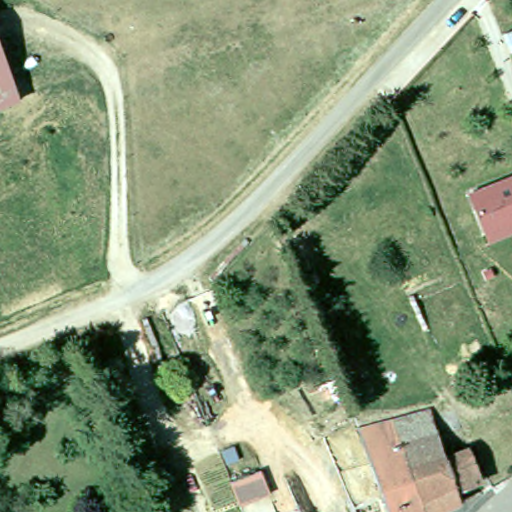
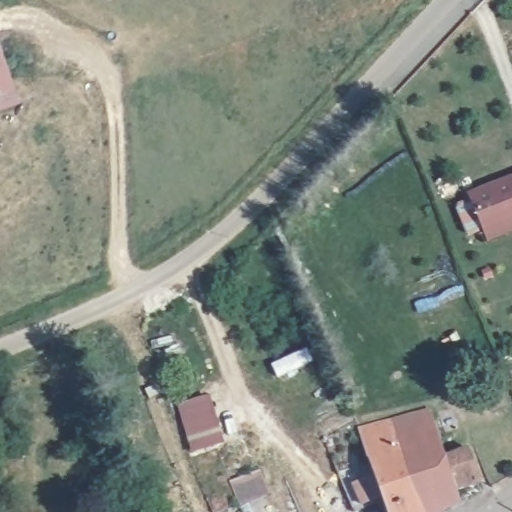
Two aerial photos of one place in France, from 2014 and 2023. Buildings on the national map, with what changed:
demolished [(512,53),(511,53),(503,35),(512,31),(512,53)]
unchanged [(0,103),(0,48),(17,97),(0,103)]
unchanged [(487,228),(470,188),(512,171),(512,225),(489,234),(487,228)]
new [(212,398),(224,445),(193,454),(179,408),(212,398)]
unchanged [(357,508),(381,499),(357,429),(428,409),(443,457),(467,449),(477,480),(453,490),(457,500),(431,512),(359,512),(357,508)]

